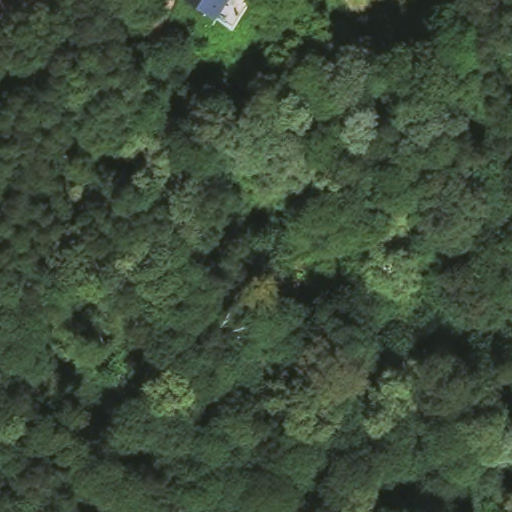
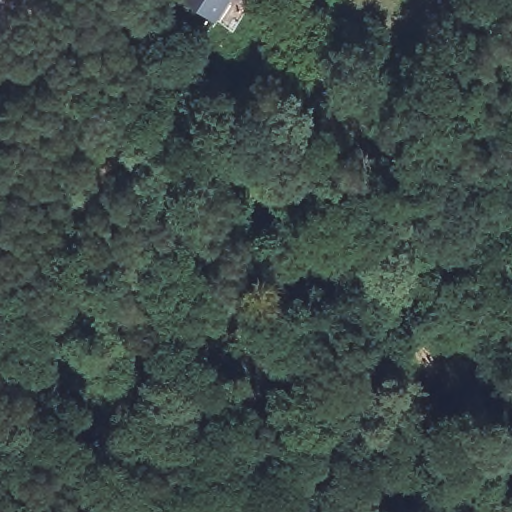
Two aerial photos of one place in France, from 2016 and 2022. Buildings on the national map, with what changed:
unchanged [(192,0),(230,0),(217,18),(192,0)]

